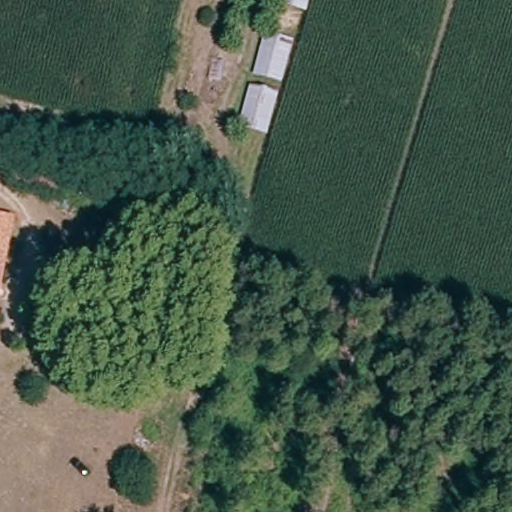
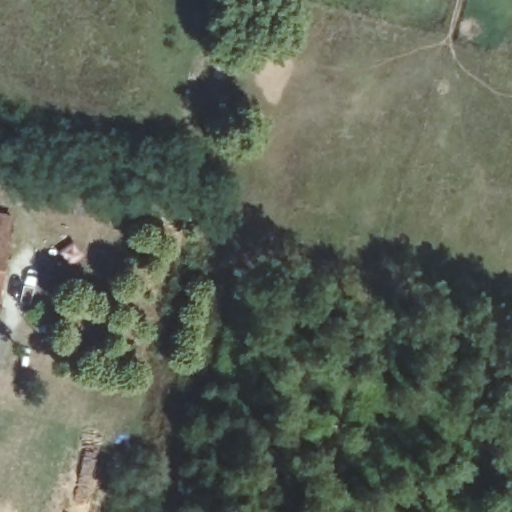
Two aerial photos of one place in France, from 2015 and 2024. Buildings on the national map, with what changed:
demolished [(278,0),(310,0),(308,6),(278,0)]
demolished [(255,73),(265,31),(293,38),(283,81),(255,73)]
demolished [(236,126),(247,85),(277,91),(269,133),(236,126)]
unchanged [(12,217),(0,280),(0,215),(12,217)]
unchanged [(115,219),(137,228),(122,265),(99,255),(115,219)]

